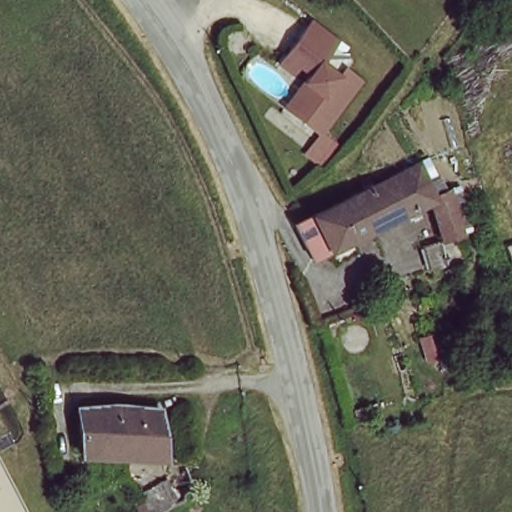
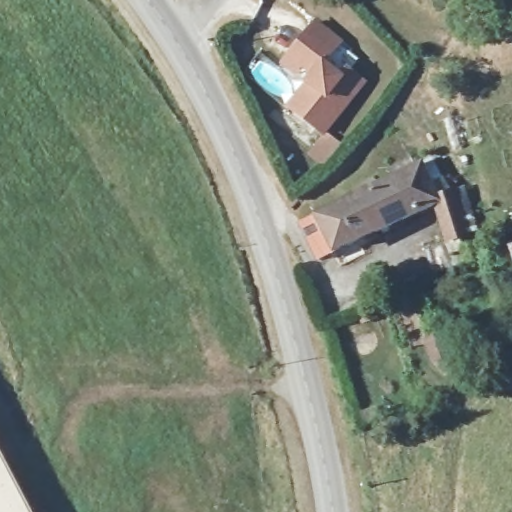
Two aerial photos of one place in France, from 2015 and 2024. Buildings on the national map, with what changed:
unchanged [(305,76),(311,69),(299,60),(293,68),(280,59),(286,51),(312,18),(338,36),(321,58),(339,71),(345,64),(362,76),(321,128),(295,108),(286,101),(305,76)]
unchanged [(444,203),(378,233),(363,198),(379,190),(374,177),(385,173),(390,185),(425,168),(444,203)]
unchanged [(464,196),(470,245),(467,246),(470,267),(437,275),(434,253),(454,247),(444,203),(464,196)]
unchanged [(378,233),(329,256),(316,221),(363,198),(378,233)]
demolished [(173,417),(174,469),(91,465),(87,419),(173,417)]
unchanged [(0,449),(33,512),(0,512),(0,449)]

